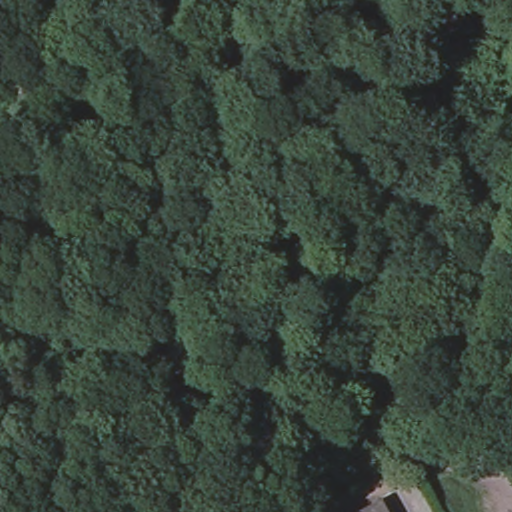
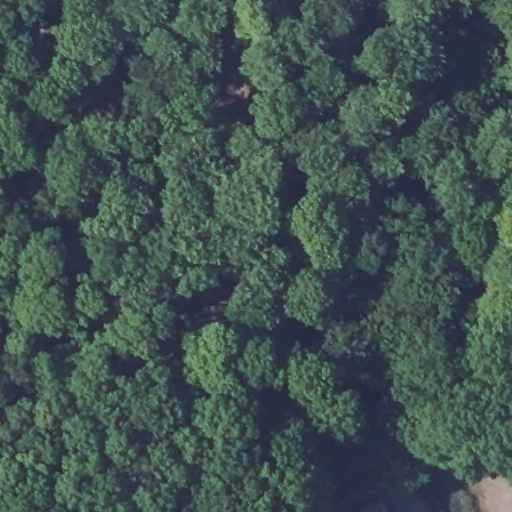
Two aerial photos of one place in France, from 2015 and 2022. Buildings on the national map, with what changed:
unchanged [(388,498),(395,512),(363,512),(388,498)]

